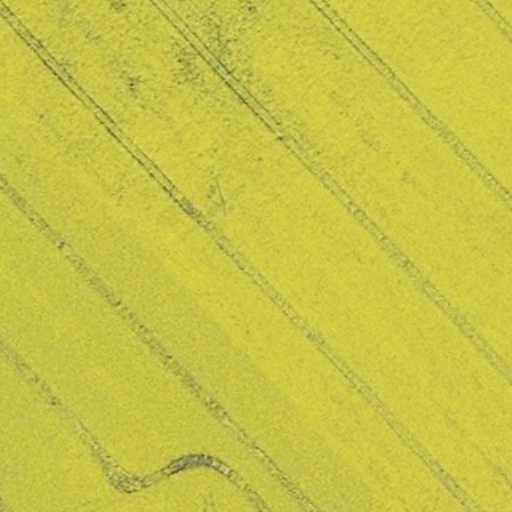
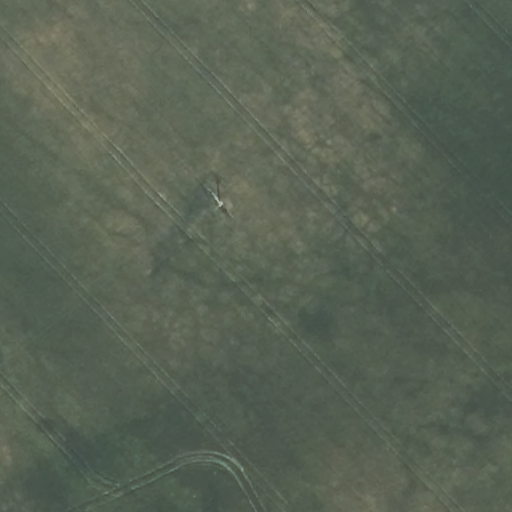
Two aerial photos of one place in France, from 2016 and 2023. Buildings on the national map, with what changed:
[]

